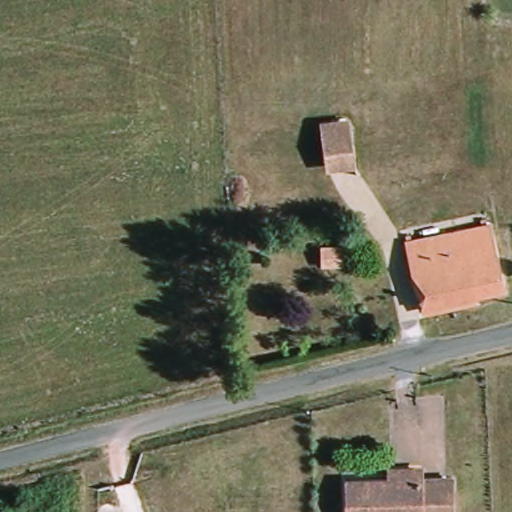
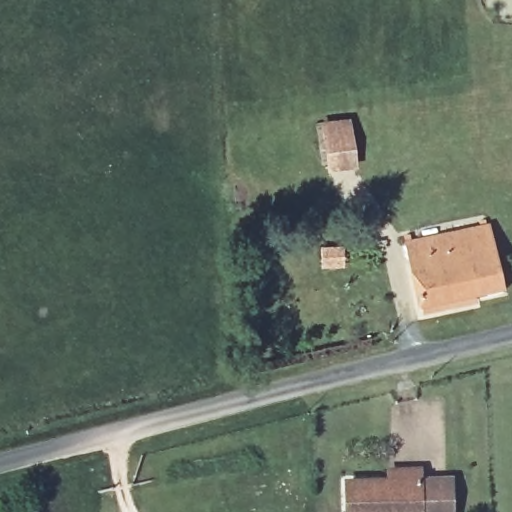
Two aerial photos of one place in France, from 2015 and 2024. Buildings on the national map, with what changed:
unchanged [(344,131),(349,171),(324,175),(319,134),(344,131)]
unchanged [(421,237),(493,223),(507,288),(424,307),(409,239),(421,237)]
unchanged [(388,484),(390,472),(423,471),(423,484),(459,483),(460,512),(348,512),(348,485),(388,484)]

